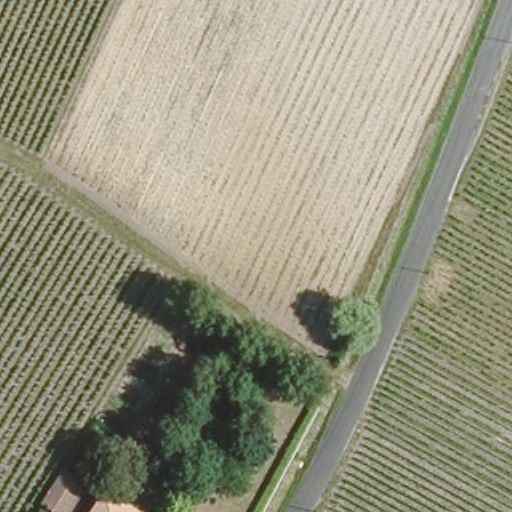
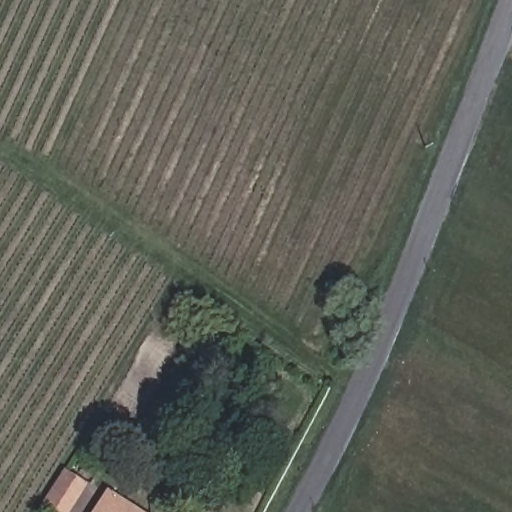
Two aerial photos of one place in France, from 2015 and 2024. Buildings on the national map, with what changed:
unchanged [(57,476),(62,467),(81,478),(76,487),(63,510),(44,498),(57,476)]
unchanged [(102,492),(135,512),(89,512),(102,492)]

